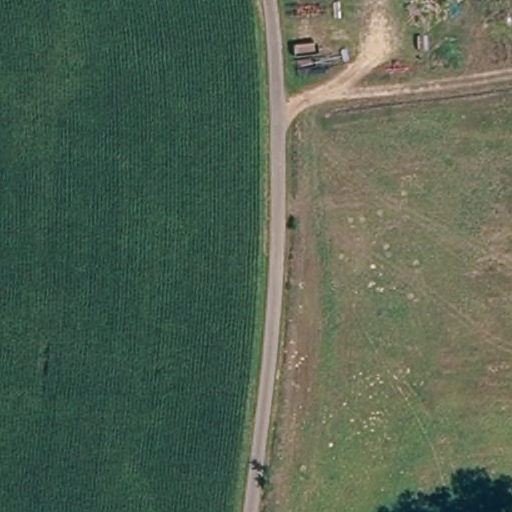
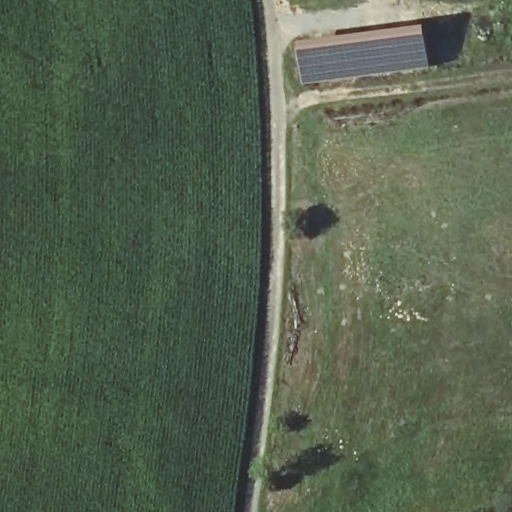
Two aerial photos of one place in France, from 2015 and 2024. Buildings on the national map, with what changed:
new [(426,23),(432,67),(305,83),(299,39),(426,23)]

